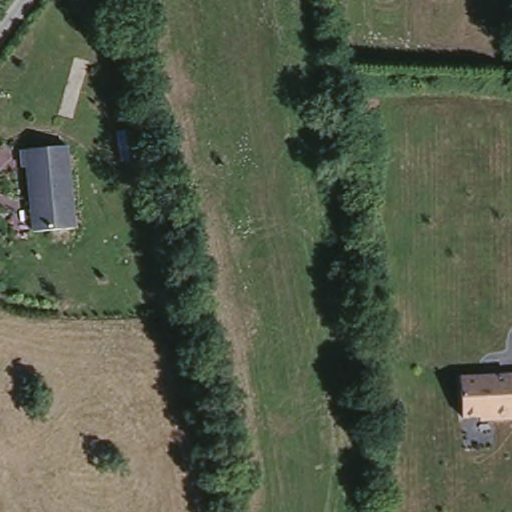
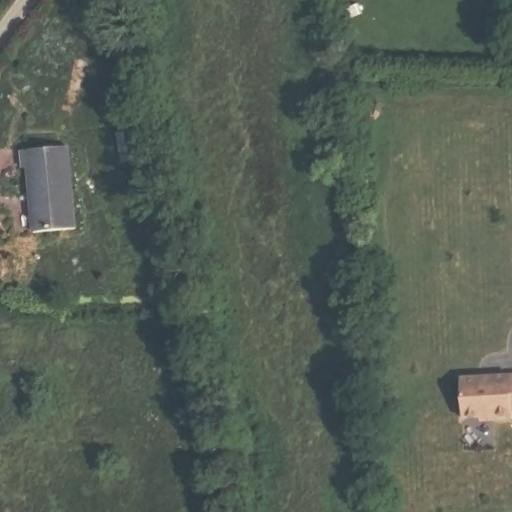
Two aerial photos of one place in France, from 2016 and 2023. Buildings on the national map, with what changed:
unchanged [(30,168),(22,169),(20,151),(70,148),(76,230),(35,234),(30,168)]
unchanged [(512,370),(512,410),(511,410),(511,414),(491,416),(491,412),(460,414),(458,374),(512,370)]

